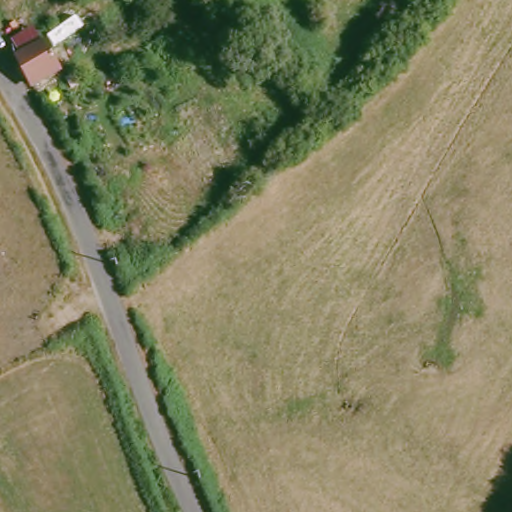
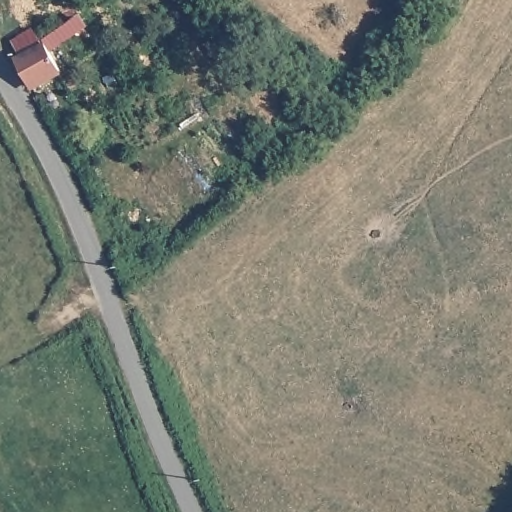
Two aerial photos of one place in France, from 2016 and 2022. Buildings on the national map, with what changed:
unchanged [(43,47),(56,77),(29,89),(15,58),(43,47)]

